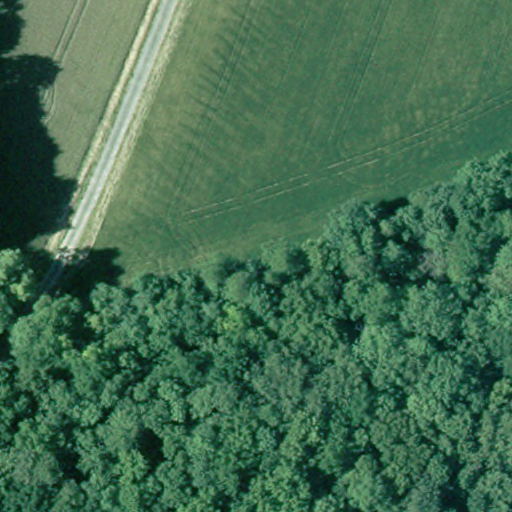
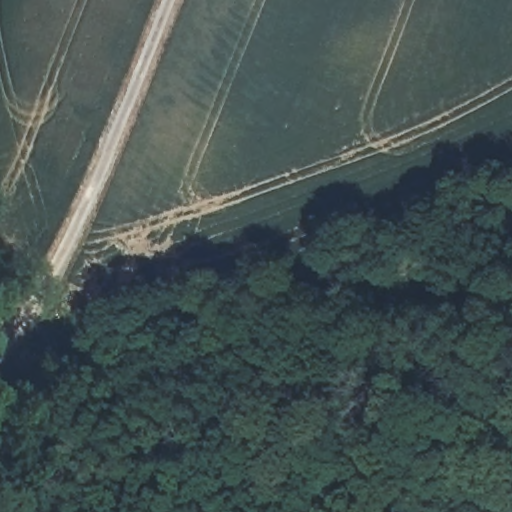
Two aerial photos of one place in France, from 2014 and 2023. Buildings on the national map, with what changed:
[]

